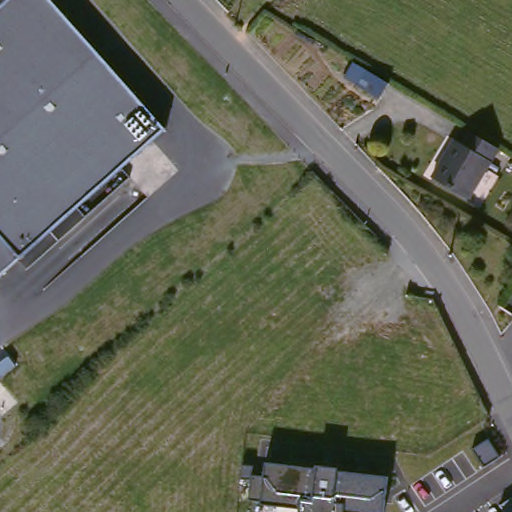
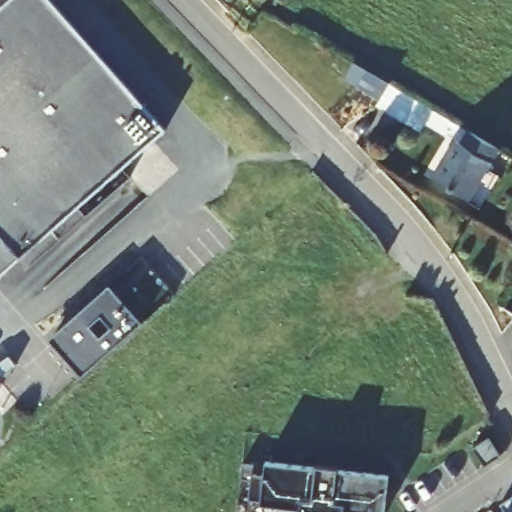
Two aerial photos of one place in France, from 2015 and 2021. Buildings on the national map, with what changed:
unchanged [(0,0),(12,0),(0,11),(0,0)]
unchanged [(54,0),(173,128),(26,255),(0,274),(0,10),(12,0),(54,0)]
unchanged [(474,126),(504,145),(475,198),(437,176),(460,134),(468,139),(474,126)]
new [(143,321),(81,375),(49,339),(109,285),(143,321)]
unchanged [(382,512),(301,512),(301,508),(259,502),(259,500),(251,499),(255,474),(265,476),(268,462),(339,470),(390,476),(382,512)]
unchanged [(502,505),(512,498),(512,512),(506,512),(502,505)]

